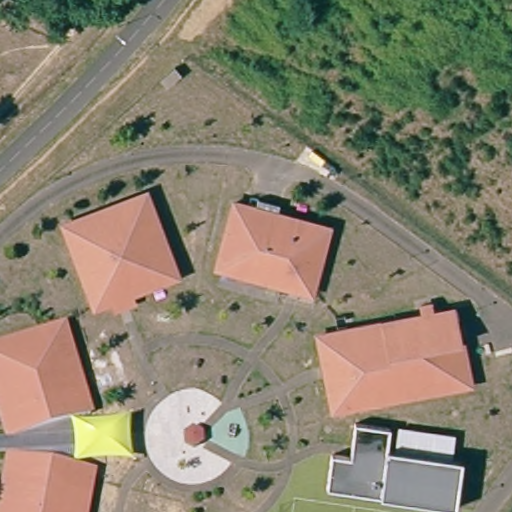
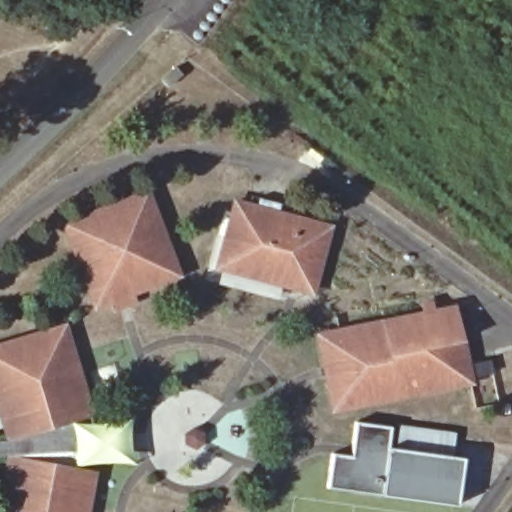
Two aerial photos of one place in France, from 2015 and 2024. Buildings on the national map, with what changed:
unchanged [(176,79),(188,68),(195,76),(181,88),(174,80),(176,79)]
unchanged [(115,299),(112,292),(97,297),(66,214),(149,183),(179,266),(134,283),(137,291),(115,299)]
unchanged [(260,189),(282,195),(280,205),(331,219),(313,284),(219,258),(237,193),(258,199),(260,189)]
unchanged [(457,300),(471,374),(335,401),(320,327),(457,300)]
unchanged [(51,336),(66,332),(74,359),(76,367),(82,387),(86,401),(92,422),(72,428),(10,446),(4,425),(0,411),(0,352),(43,339),(51,336)]
unchanged [(392,429),(389,450),(464,460),(457,508),(328,490),(333,455),(352,458),(356,424),(392,429)]
unchanged [(72,428),(74,472),(11,460),(0,461),(0,446),(10,446),(72,428)]
unchanged [(4,495),(11,460),(74,472),(95,476),(88,511),(88,512),(1,512),(1,509),(4,495)]

